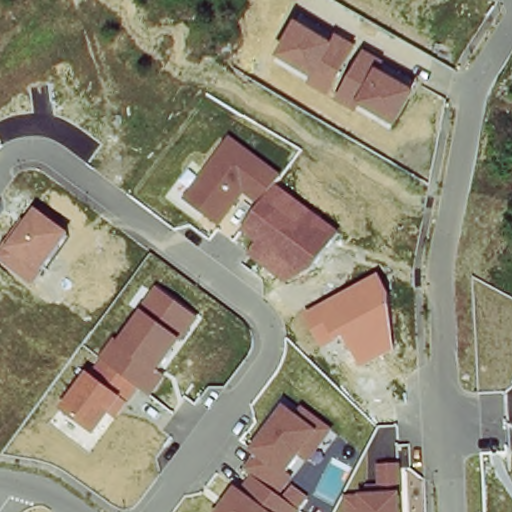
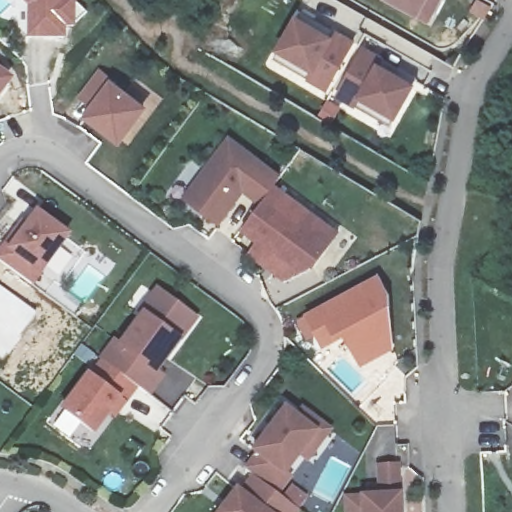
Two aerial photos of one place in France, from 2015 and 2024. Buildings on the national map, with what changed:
new [(75,1),(88,13),(75,27),(65,40),(29,41),(15,21),(27,7),(20,0),(73,0),(75,1)]
new [(442,2),(428,26),(380,0),(443,0),(442,2)]
unchanged [(334,38),(338,31),(358,43),(328,94),(273,61),(278,52),(298,16),(334,38)]
unchanged [(392,130),(337,99),(366,46),(389,59),(385,67),(417,86),(392,130)]
new [(16,78),(0,98),(0,67),(16,78)]
new [(111,81),(150,108),(122,149),(82,119),(89,110),(78,100),(98,71),(111,81)]
unchanged [(184,198),(231,136),(284,174),(259,206),(245,194),(219,227),(184,198)]
unchanged [(312,270),(287,284),(248,256),(257,244),(240,231),(259,206),(277,183),(344,233),(312,270)]
unchanged [(44,273),(34,286),(0,263),(0,250),(22,218),(27,222),(38,207),(72,234),(44,273)]
unchanged [(392,295),(396,351),(363,369),(347,338),(324,351),(305,315),(382,275),(392,295)]
new [(38,313),(3,360),(0,358),(0,286),(38,313)]
unchanged [(158,370),(168,377),(152,398),(141,390),(117,421),(110,416),(96,436),(60,412),(88,372),(91,375),(116,337),(119,340),(157,288),(201,319),(158,370)]
unchanged [(244,488),(252,477),(248,472),(263,456),(256,451),(287,410),(299,417),(304,410),(332,432),(313,462),(303,453),(286,474),(292,479),(280,494),(301,512),(221,512),(241,486),(244,488)]
unchanged [(361,494),(369,494),(369,484),(379,484),(378,463),(403,463),(404,494),(405,512),(346,512),(345,495),(361,494)]

